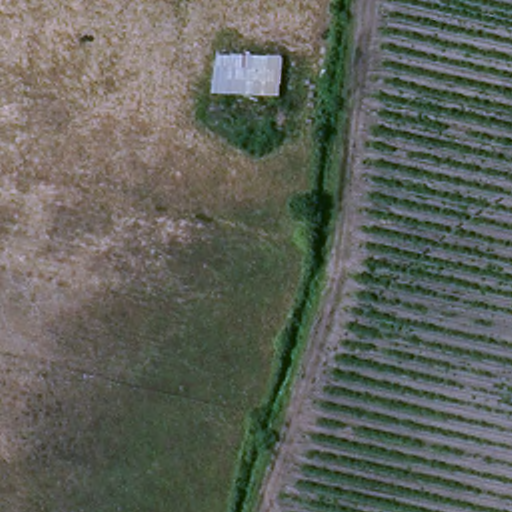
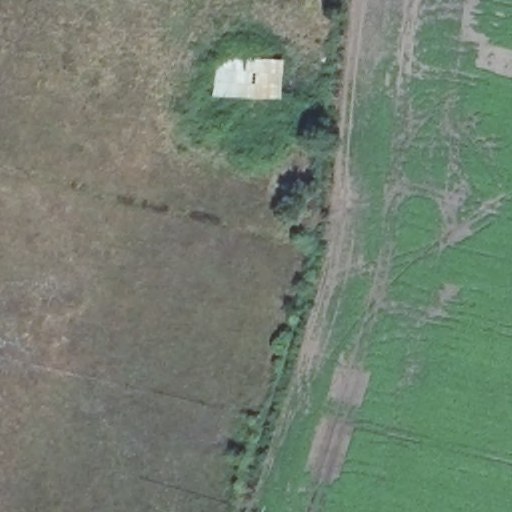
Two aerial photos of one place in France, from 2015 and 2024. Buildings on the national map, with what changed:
unchanged [(285,103),(216,100),(219,58),(286,62),(285,103)]

